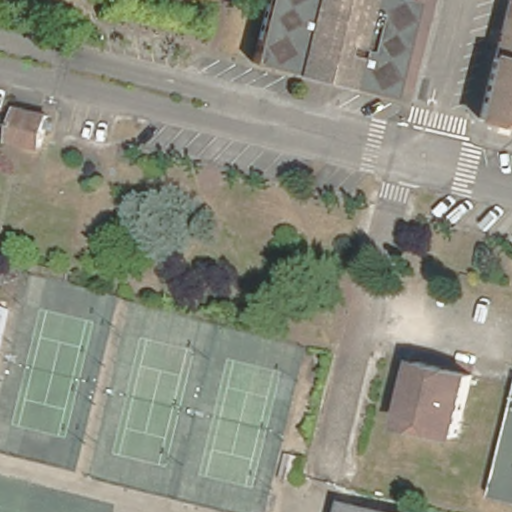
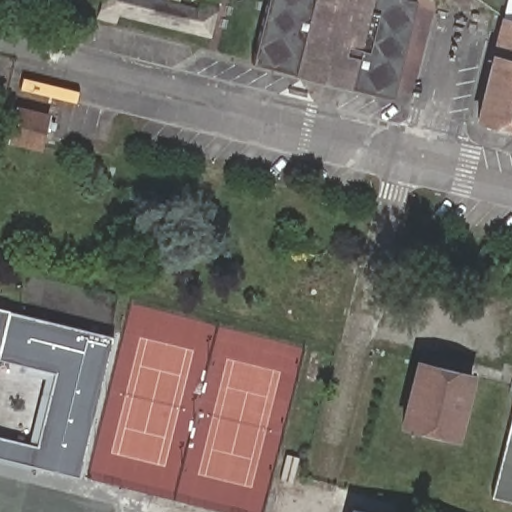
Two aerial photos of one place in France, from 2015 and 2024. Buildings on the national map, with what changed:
unchanged [(119,16),(117,25),(96,19),(101,0),(172,0),(197,6),(199,0),(209,0),(220,3),(211,40),(119,16)]
unchanged [(417,6),(392,103),(336,89),(307,81),(251,67),(268,0),(394,0),(417,6)]
unchanged [(493,53),(502,18),(512,20),(512,129),(476,119),(493,53)]
unchanged [(9,140),(13,123),(17,108),(48,115),(40,147),(9,140)]
unchanged [(5,311),(0,332),(0,309),(5,311)]
new [(5,311),(112,336),(79,476),(0,457),(0,436),(28,442),(44,377),(24,372),(26,364),(0,358),(0,332),(5,311)]
unchanged [(470,375),(455,436),(402,423),(417,362),(470,375)]
unchanged [(512,417),(512,508),(490,502),(512,417)]
unchanged [(291,481),(277,477),(284,453),(298,456),(291,481)]
unchanged [(362,512),(343,512),(344,507),(362,512)]

